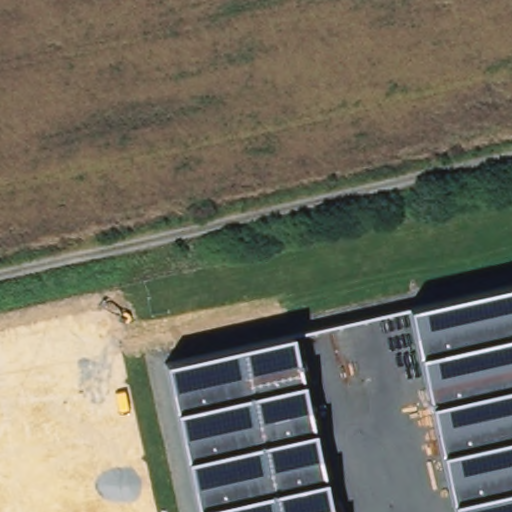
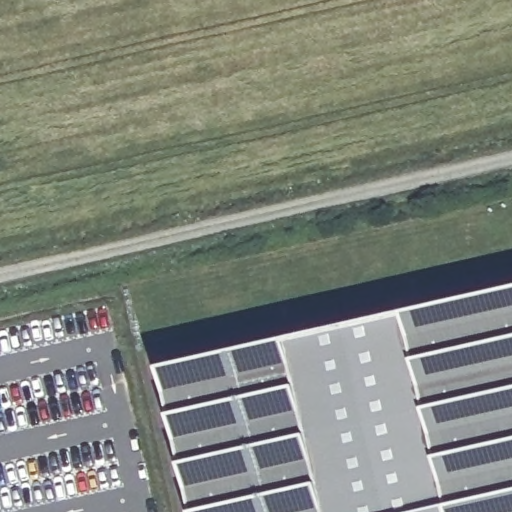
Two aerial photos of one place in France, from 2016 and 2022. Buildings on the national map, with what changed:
unchanged [(407,311),(512,287),(512,512),(454,512),(407,311)]
new [(407,311),(454,512),(329,512),(291,337),(407,311)]
unchanged [(164,367),(291,337),(329,512),(197,512),(164,367)]

